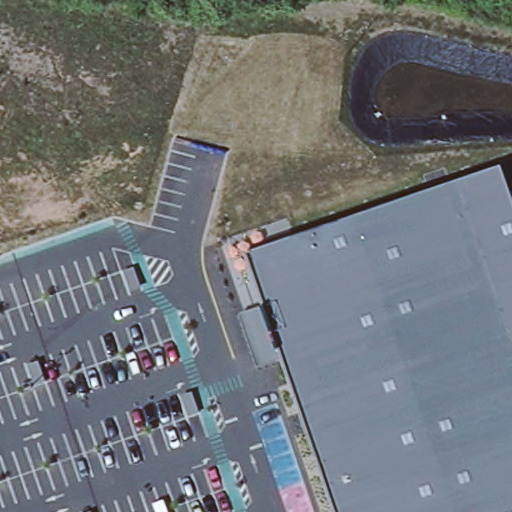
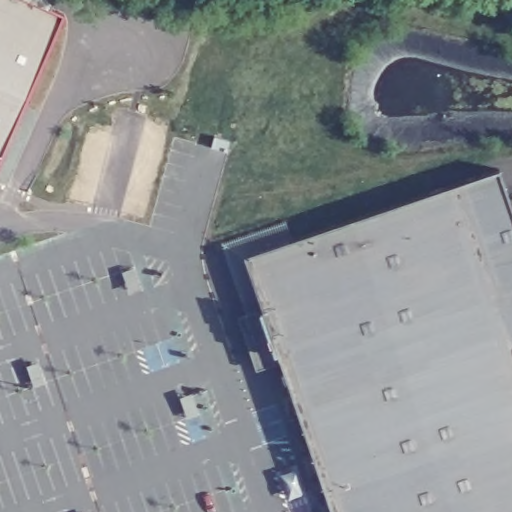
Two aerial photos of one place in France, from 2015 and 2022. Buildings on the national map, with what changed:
new [(50,8),(63,14),(0,157),(0,0),(54,0),(50,8)]
unchanged [(255,370),(237,316),(261,307),(244,255),(499,167),(512,205),(512,512),(332,512),(281,362),(255,370)]

